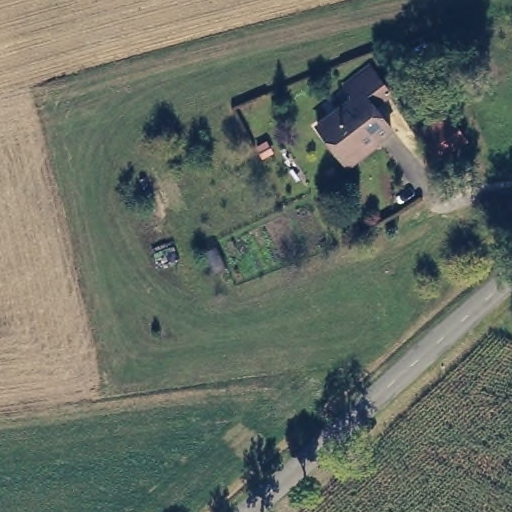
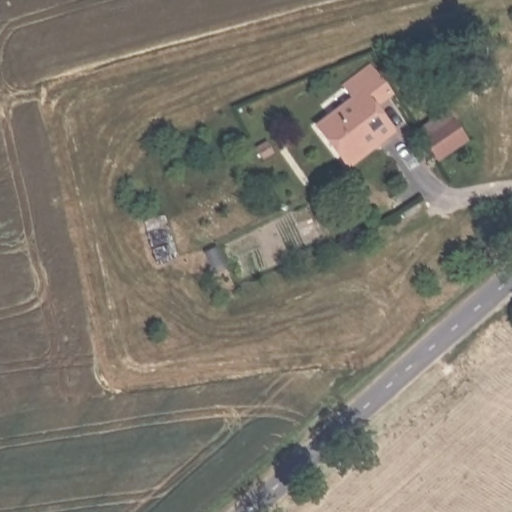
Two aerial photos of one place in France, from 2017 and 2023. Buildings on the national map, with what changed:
unchanged [(342,158),(317,123),(349,100),(340,87),(373,68),(391,95),(378,108),(393,131),(376,143),(347,165),(342,158)]

